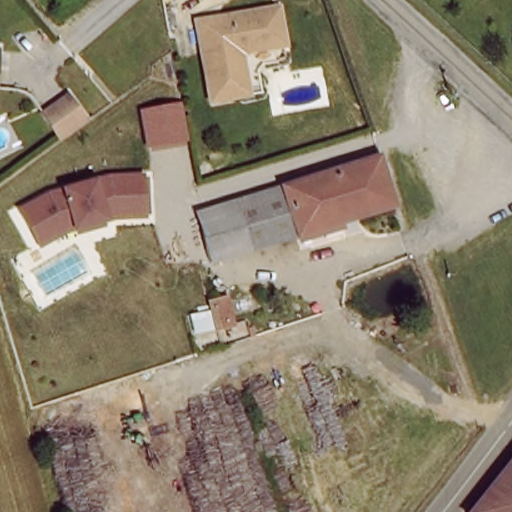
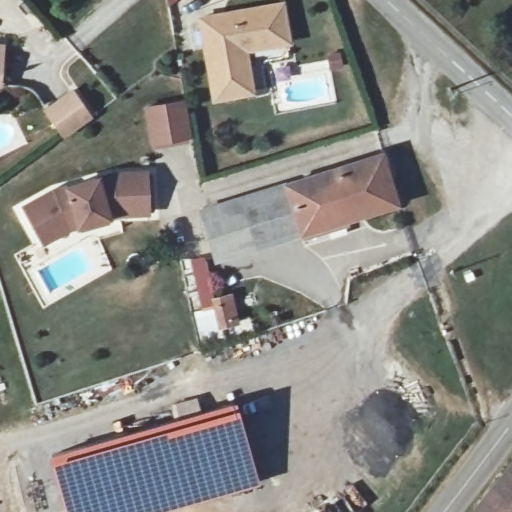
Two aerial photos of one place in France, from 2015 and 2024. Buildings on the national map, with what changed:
unchanged [(206,17),(289,5),(296,41),(251,48),(258,92),(221,97),(206,17)]
unchanged [(1,89),(0,89),(0,51),(6,52),(1,89)]
unchanged [(78,130),(63,142),(42,114),(68,95),(88,122),(78,130)]
new [(186,100),(191,130),(153,136),(148,106),(186,100)]
unchanged [(385,147),(400,197),(304,226),(303,225),(290,182),(289,179),(385,147)]
unchanged [(58,182),(103,174),(146,172),(146,216),(108,220),(71,229),(37,245),(21,205),(58,182)]
unchanged [(290,182),(303,225),(304,226),(246,245),(246,241),(235,196),(289,179),(290,182)]
unchanged [(246,241),(215,251),(206,212),(204,206),(235,196),(246,241)]
new [(161,512),(64,512),(50,461),(238,407),(259,485),(161,512)]
unchanged [(476,509),(512,461),(512,512),(481,512),(476,509)]

